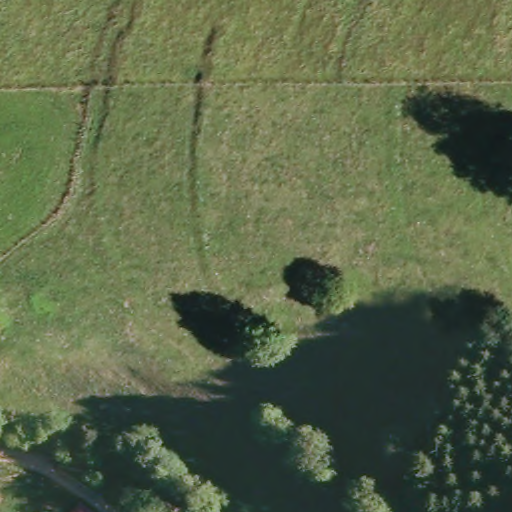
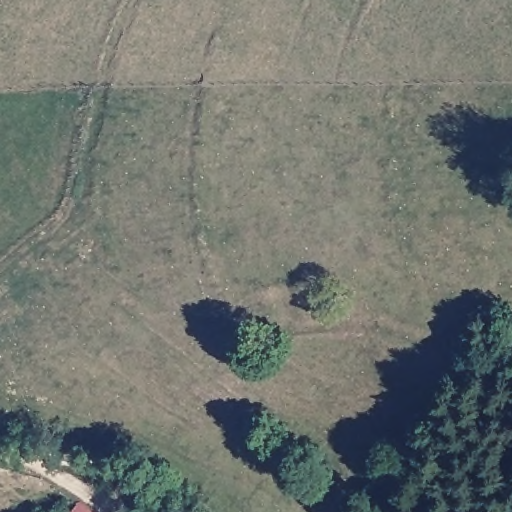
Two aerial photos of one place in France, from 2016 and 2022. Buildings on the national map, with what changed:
unchanged [(71,512),(78,503),(89,512),(71,512)]

